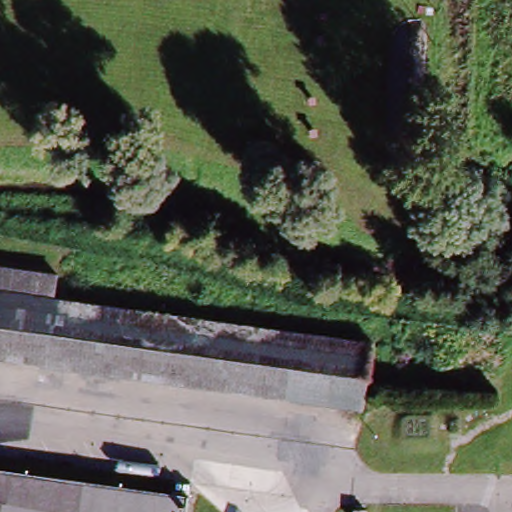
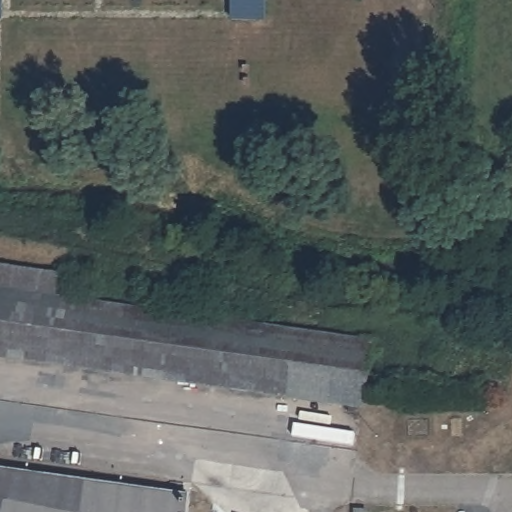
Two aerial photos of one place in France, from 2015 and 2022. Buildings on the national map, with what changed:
new [(235,0),(269,0),(268,22),(235,22),(235,0)]
unchanged [(0,359),(0,281),(60,290),(57,315),(374,359),(366,410),(0,359)]
unchanged [(190,497),(189,512),(0,512),(0,471),(190,497)]

